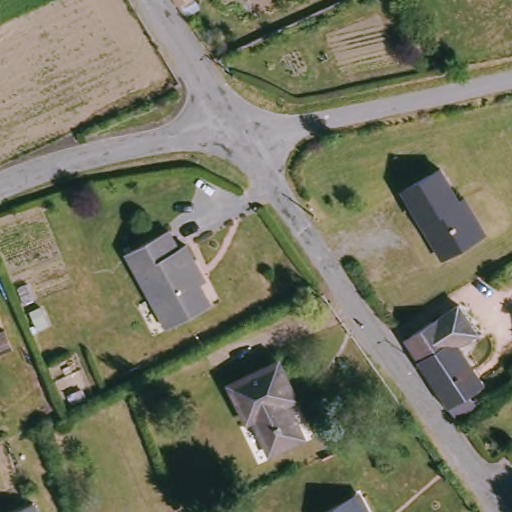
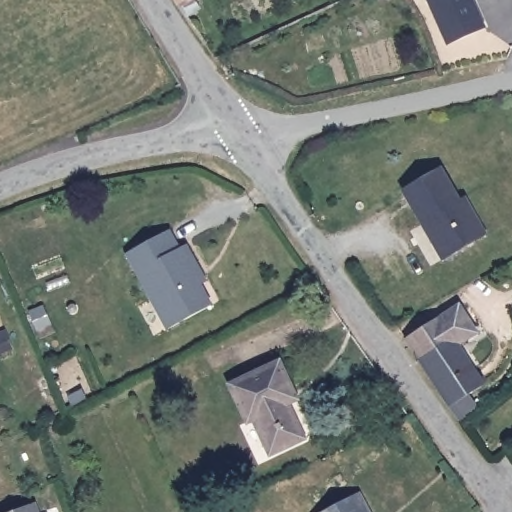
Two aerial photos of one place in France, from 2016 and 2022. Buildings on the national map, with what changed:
unchanged [(178,2),(177,0),(182,0),(178,2)]
new [(486,26),(448,45),(427,0),(474,0),(486,26)]
unchanged [(422,220),(403,186),(440,165),(460,197),(465,194),(485,230),(447,251),(442,255),(422,220)]
unchanged [(180,250),(187,246),(196,262),(207,283),(201,286),(212,306),(168,329),(130,252),(170,231),(180,250)]
unchanged [(465,418),(456,405),(425,361),(410,339),(462,304),(481,331),(462,344),(490,383),(480,389),(487,398),(490,402),(465,418)]
unchanged [(232,386),(281,363),(294,391),(286,395),(308,440),(272,456),(255,420),(250,422),(232,386)]
unchanged [(360,493),(369,512),(321,512),(320,511),(360,493)]
unchanged [(43,512),(8,512),(38,500),(43,512)]

